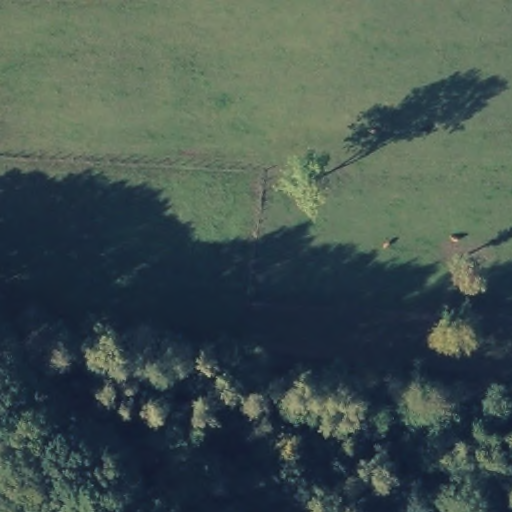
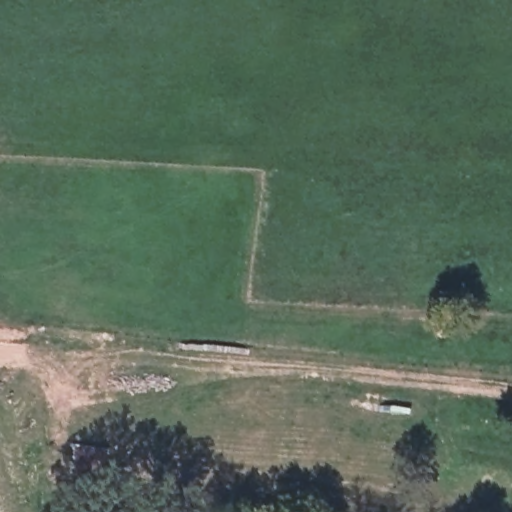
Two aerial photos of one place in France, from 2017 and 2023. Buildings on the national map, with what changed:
unchanged [(103,453),(100,462),(74,456),(75,447),(103,453)]

